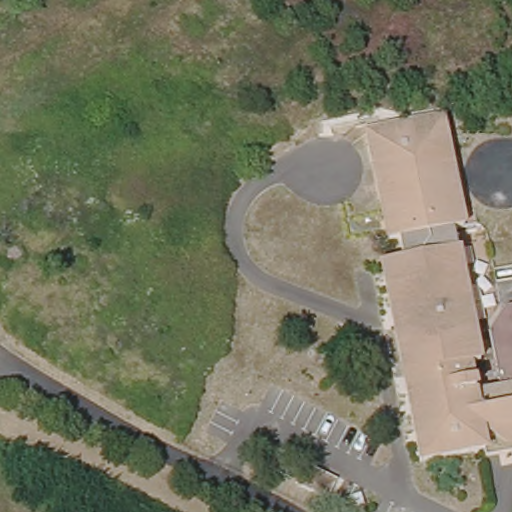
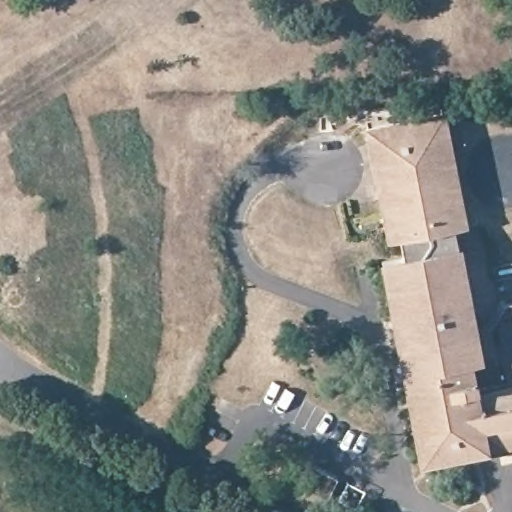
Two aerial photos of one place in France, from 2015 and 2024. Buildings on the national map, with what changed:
unchanged [(390,243),(410,241),(408,222),(396,223),(389,170),(386,146),(383,117),(460,108),(463,136),(466,158),(473,217),(462,218),(477,349),(468,350),(471,375),(499,372),(493,320),(512,295),(512,442),(485,445),(484,435),(413,441),(390,243)]
unchanged [(292,487),(304,459),(337,476),(325,501),(292,487)]

